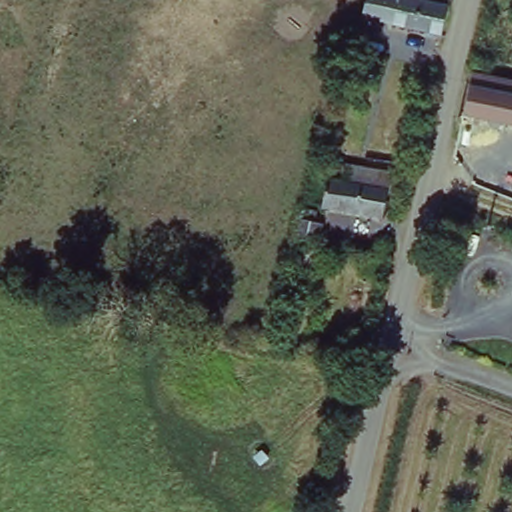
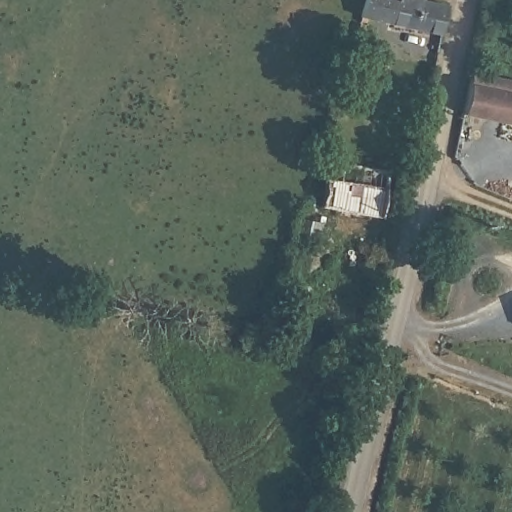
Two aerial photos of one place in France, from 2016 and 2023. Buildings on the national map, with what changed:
unchanged [(360,16),(363,0),(419,0),(449,9),(442,39),(360,16)]
unchanged [(473,71),(512,79),(512,123),(464,115),(473,71)]
unchanged [(384,220),(326,208),(332,182),(345,185),(350,175),(391,183),(384,220)]
unchanged [(321,242),(333,251),(319,273),(308,269),(302,281),(284,277),(300,208),(324,219),(321,242)]

